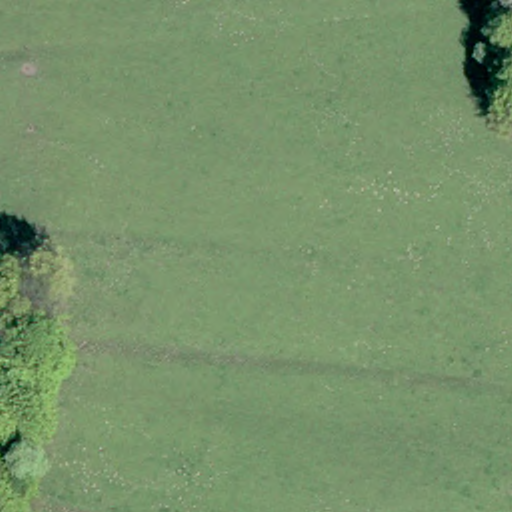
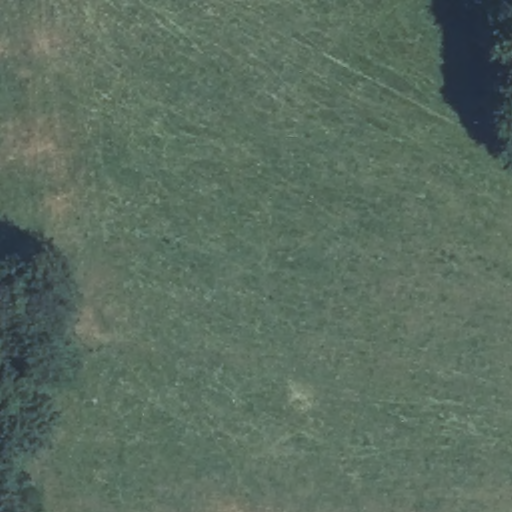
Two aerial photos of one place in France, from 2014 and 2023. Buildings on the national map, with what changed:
[]

